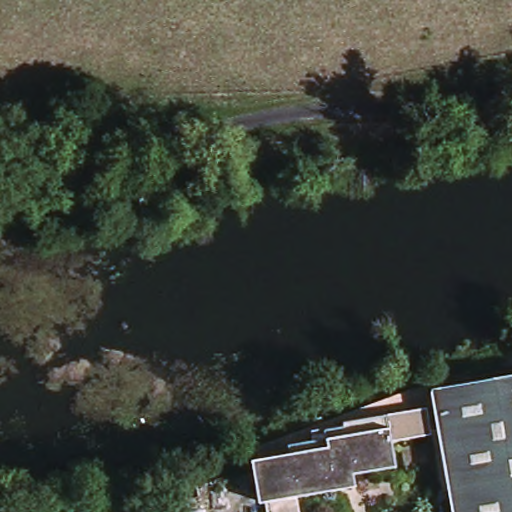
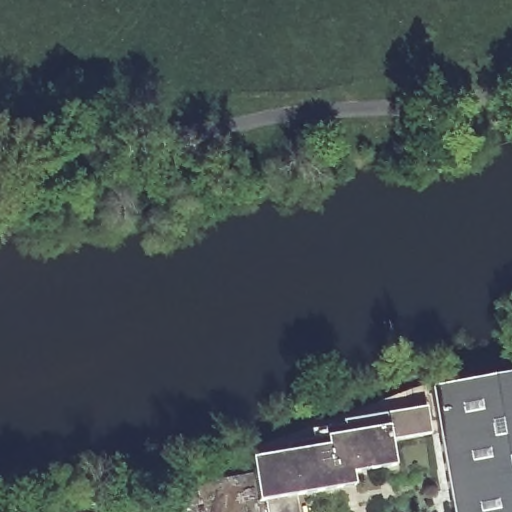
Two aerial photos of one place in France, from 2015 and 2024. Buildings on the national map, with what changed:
unchanged [(451,512),(430,389),(512,374),(512,512),(451,512)]
unchanged [(430,434),(390,442),(395,467),(352,474),(355,486),(295,497),(298,512),(265,512),(264,502),(257,503),(252,474),(250,460),(256,459),(257,459),(287,453),(287,445),(325,437),(324,430),(342,426),(342,422),(426,407),(430,434)]

